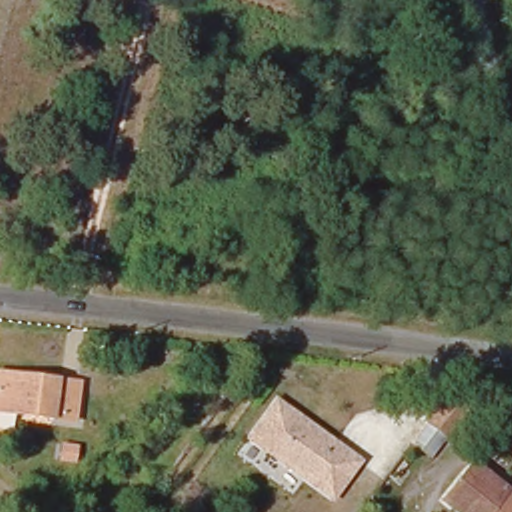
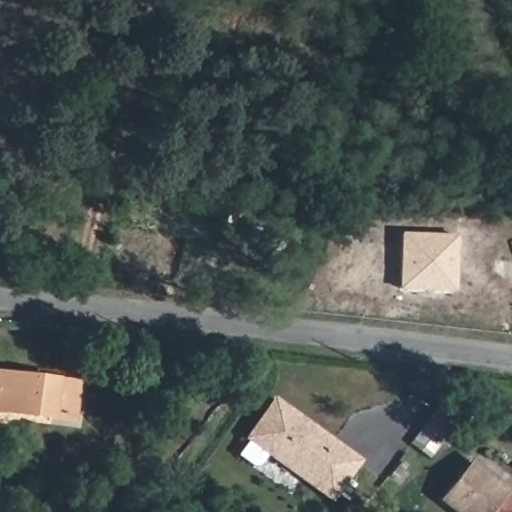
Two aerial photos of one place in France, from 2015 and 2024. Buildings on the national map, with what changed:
new [(458,235),(456,292),(399,290),(401,234),(458,235)]
unchanged [(67,420),(0,411),(0,373),(74,384),(67,420)]
unchanged [(332,503),(246,443),(279,399),(364,460),(332,503)]
unchanged [(435,411),(453,426),(441,439),(424,422),(435,411)]
unchanged [(66,445),(65,461),(49,460),(50,444),(66,445)]
unchanged [(512,507),(509,512),(451,512),(439,502),(464,464),(512,498),(512,507)]

